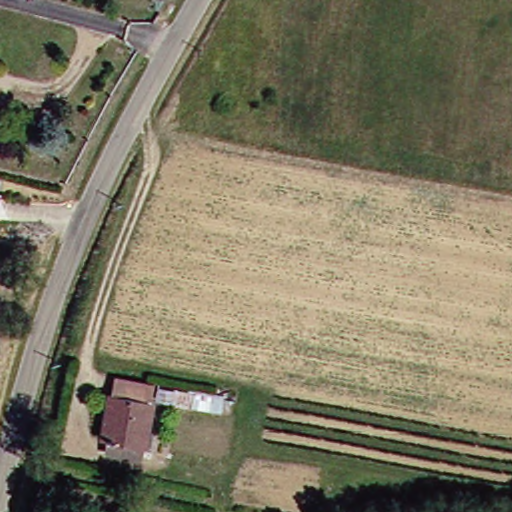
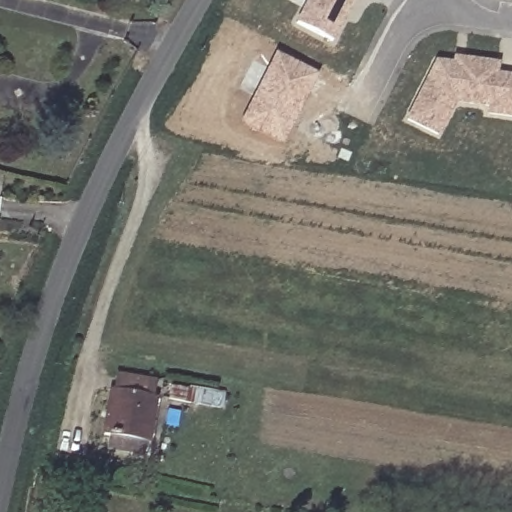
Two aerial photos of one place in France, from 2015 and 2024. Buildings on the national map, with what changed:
new [(294,24),(306,0),(355,0),(333,42),(294,24)]
new [(281,146),(237,124),(273,52),(317,76),(281,146)]
new [(496,73),(512,76),(512,120),(484,117),(486,110),(453,106),(437,139),(401,121),(432,61),(449,62),(450,56),(498,63),(496,73)]
unchanged [(113,377),(148,385),(146,395),(109,388),(113,377)]
unchanged [(100,436),(106,392),(149,398),(140,443),(100,436)]

